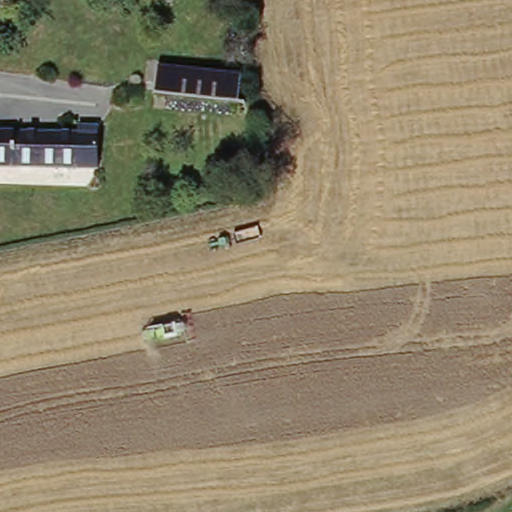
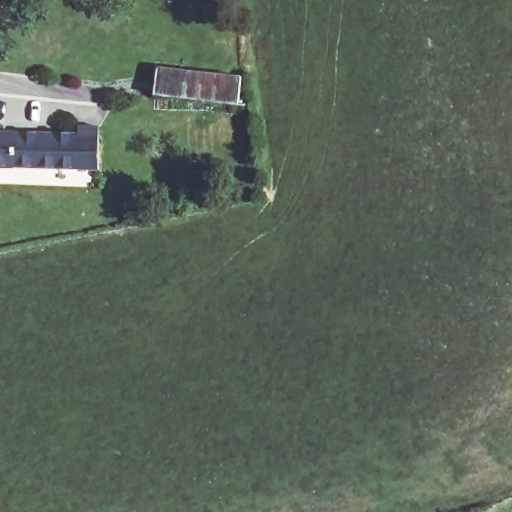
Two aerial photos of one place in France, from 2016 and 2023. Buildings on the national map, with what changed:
unchanged [(164,61),(229,70),(243,74),(239,105),(234,105),(157,92),(160,82),(164,61)]
unchanged [(72,127),(73,116),(101,117),(101,159),(0,160),(0,125),(72,127)]

